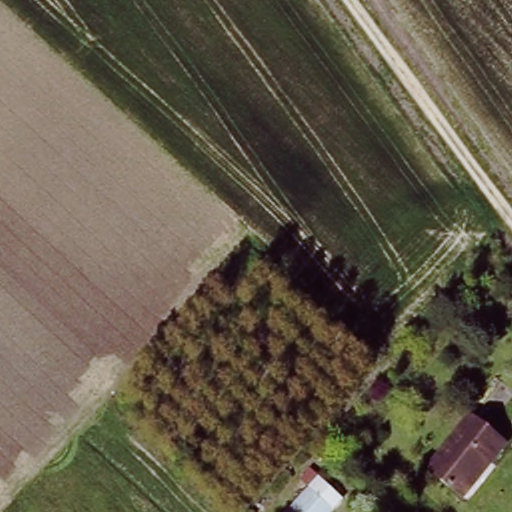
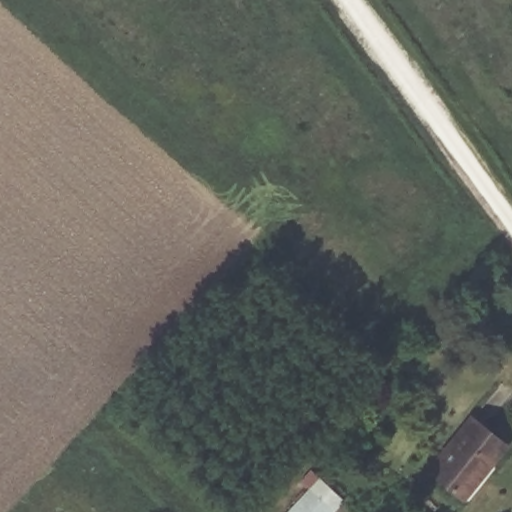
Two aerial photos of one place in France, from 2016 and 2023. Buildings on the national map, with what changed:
unchanged [(483,481),(479,479),(464,500),(459,496),(429,471),(448,448),(450,451),(457,442),(472,424),(506,451),(490,472),(483,482),(483,481)]
unchanged [(319,484),(344,504),(337,512),(297,512),(319,484)]

